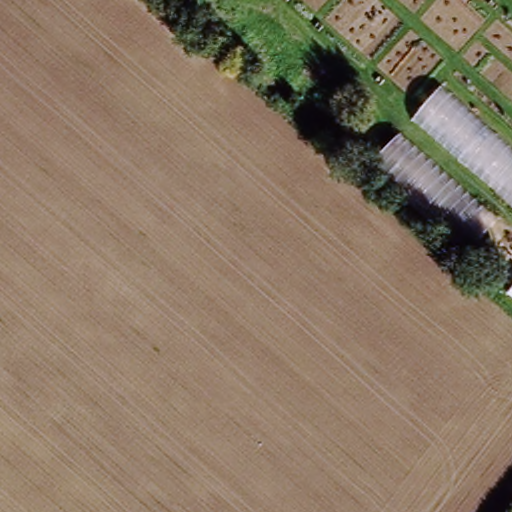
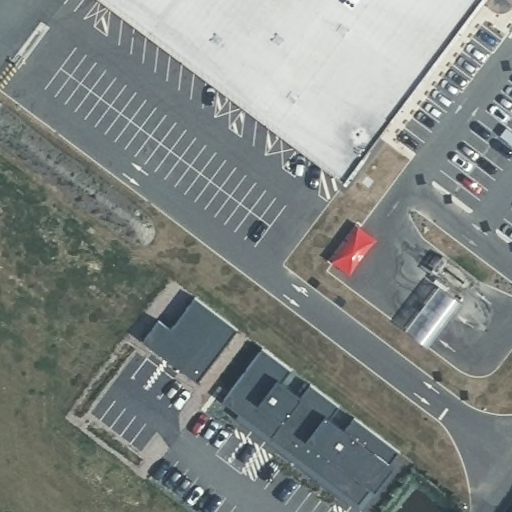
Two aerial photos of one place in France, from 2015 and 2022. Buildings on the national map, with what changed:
new [(347,182),(108,0),(484,0),(347,182)]
demolished [(512,153),(512,209),(403,116),(430,80),(512,153)]
demolished [(388,127),(503,229),(474,257),(356,160),(388,127)]
new [(291,370),(281,382),(304,397),(311,384),(339,406),(329,418),(346,432),(356,420),(403,457),(361,508),(223,400),(263,350),(291,370)]

